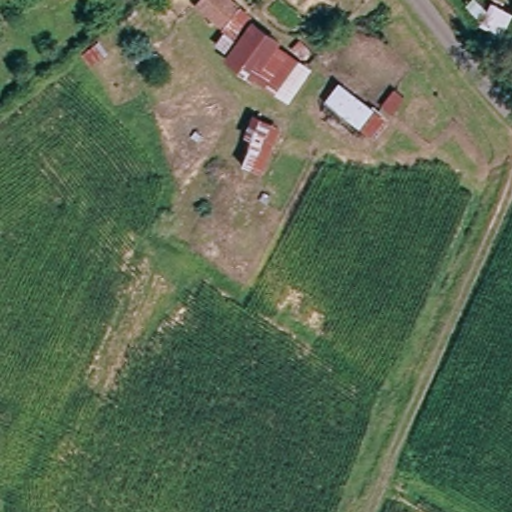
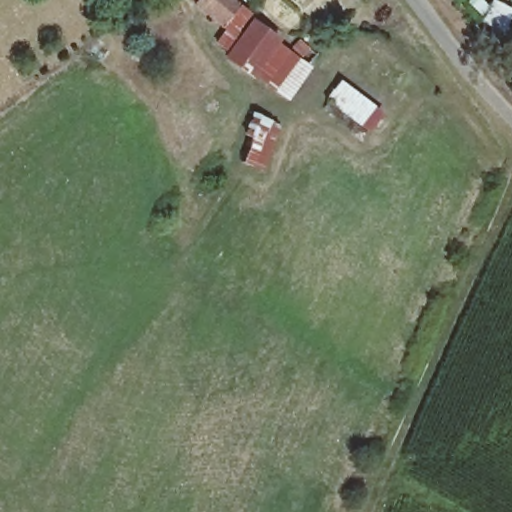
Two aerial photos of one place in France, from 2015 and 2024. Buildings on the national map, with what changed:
unchanged [(208,18),(190,0),(228,0),(208,18)]
unchanged [(494,32),(472,21),(482,0),(488,0),(505,8),(494,32)]
unchanged [(245,16),(267,39),(237,67),(214,46),(245,16)]
unchanged [(310,67),(288,98),(237,67),(267,39),(310,67)]
unchanged [(322,98),(337,79),(385,115),(371,134),(322,98)]
unchanged [(257,116),(280,125),(258,172),(238,161),(257,116)]

